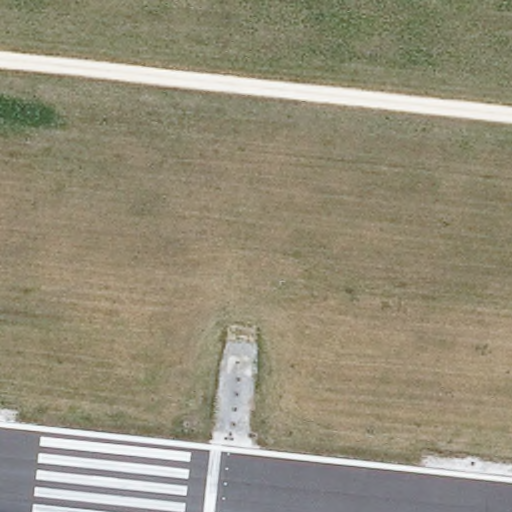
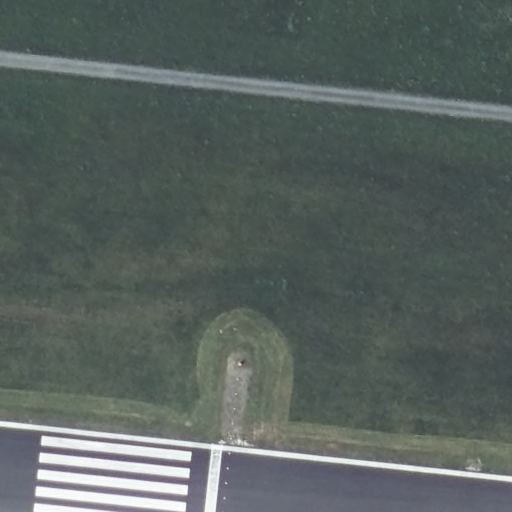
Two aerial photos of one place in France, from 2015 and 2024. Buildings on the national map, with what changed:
[]

